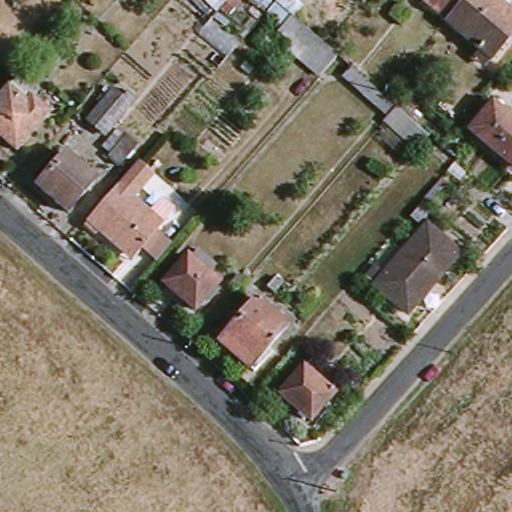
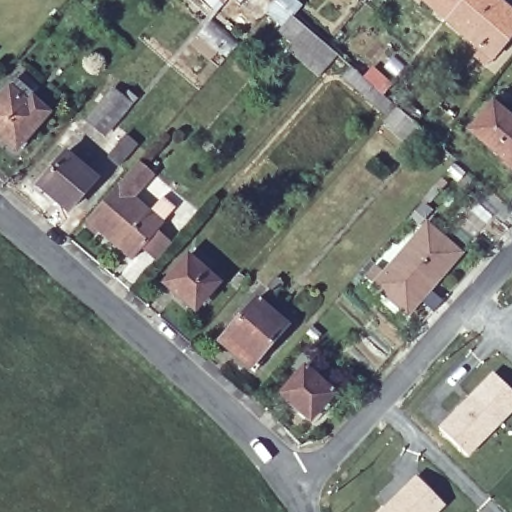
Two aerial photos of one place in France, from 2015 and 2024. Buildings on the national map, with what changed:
unchanged [(436,0),(453,0),(446,9),(436,0)]
unchanged [(438,16),(446,9),(453,0),(492,0),(512,18),(512,48),(495,67),(438,16)]
unchanged [(334,44),(347,56),(326,81),(275,39),(297,12),(334,44)]
unchanged [(423,146),(395,121),(352,82),(362,70),(393,94),(407,107),(435,132),(423,146)]
unchanged [(21,147),(0,129),(0,103),(15,86),(32,100),(39,95),(54,107),(21,147)]
unchanged [(98,124),(108,112),(125,92),(140,106),(123,125),(114,136),(98,124)]
unchanged [(512,119),(512,167),(475,132),(497,107),(512,119)]
unchanged [(146,146),(129,167),(117,157),(121,152),(115,147),(129,131),(146,146)]
unchanged [(101,178),(74,208),(44,182),(70,152),(101,178)]
unchanged [(175,254),(162,270),(145,255),(139,262),(91,222),(144,164),(159,177),(138,202),(169,229),(162,237),(177,251),(175,254)]
unchanged [(464,250),(411,312),(376,283),(431,220),(464,250)]
unchanged [(220,284),(195,311),(166,286),(190,258),(220,284)]
unchanged [(284,283),(274,293),(265,287),(276,277),(284,283)]
unchanged [(255,362),(222,337),(254,300),(285,327),(255,362)]
unchanged [(337,394),(314,421),(282,394),(307,368),(337,394)]
new [(493,375),(512,393),(512,410),(467,457),(439,429),(493,375)]
new [(416,478),(443,506),(437,512),(381,512),(416,478)]

